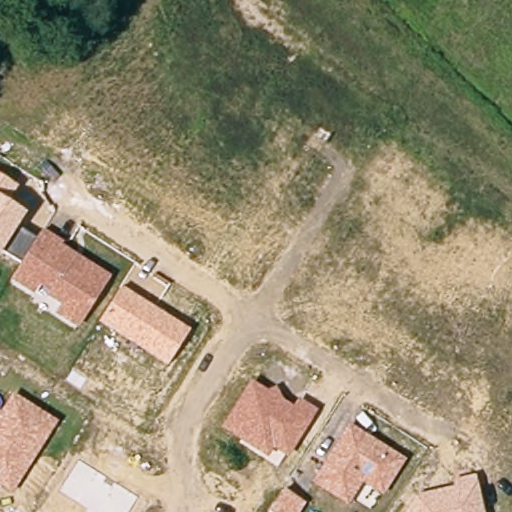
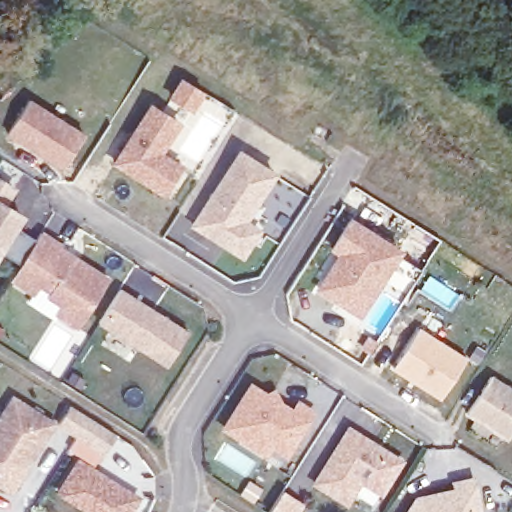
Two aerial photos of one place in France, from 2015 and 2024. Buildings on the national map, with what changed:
new [(85,134),(63,170),(5,134),(29,97),(85,134)]
new [(163,192),(115,162),(151,105),(178,122),(159,152),(180,165),(163,192)]
unchanged [(242,256),(231,249),(212,237),(193,225),(205,206),(239,152),(274,174),(244,221),(247,223),(258,230),(242,256)]
unchanged [(56,315),(61,305),(37,289),(33,296),(9,281),(20,264),(2,252),(0,254),(0,178),(18,189),(9,203),(25,214),(17,228),(34,241),(42,230),(62,242),(60,245),(109,278),(78,329),(56,315)]
new [(402,251),(361,318),(315,290),(337,254),(330,249),(351,216),(402,251)]
unchanged [(98,323),(120,287),(189,330),(167,367),(98,323)]
new [(468,358),(441,401),(392,369),(419,326),(468,358)]
new [(487,351),(478,364),(468,358),(476,344),(487,351)]
new [(512,390),(512,434),(508,440),(468,414),(492,376),(512,390)]
unchanged [(219,429),(249,381),(292,407),(297,399),(316,412),(287,458),(272,449),(267,458),(219,429)]
unchanged [(0,487),(0,412),(11,394),(56,422),(12,495),(0,487)]
new [(104,453),(77,436),(59,424),(70,406),(89,417),(116,435),(104,453)]
unchanged [(311,485),(348,425),(406,459),(382,498),(360,485),(348,506),(311,485)]
new [(81,512),(83,508),(55,492),(77,457),(141,496),(131,512),(81,512)]
unchanged [(453,487),(451,480),(475,475),(483,512),(404,512),(414,496),(453,487)]
unchanged [(305,503),(299,512),(268,512),(283,489),(305,503)]

